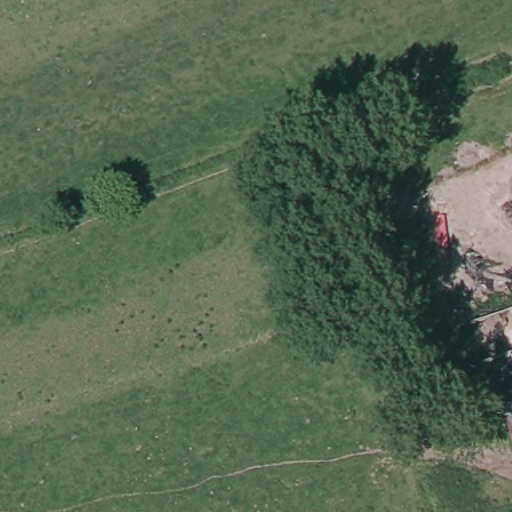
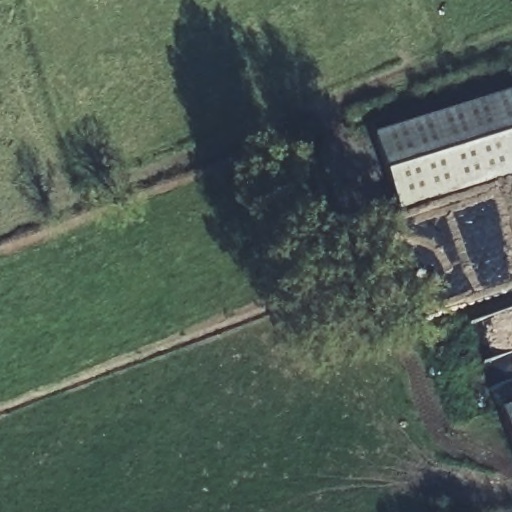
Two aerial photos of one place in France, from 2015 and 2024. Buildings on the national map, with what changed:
new [(375,135),(512,91),(512,178),(399,214),(375,135)]
unchanged [(512,412),(512,444),(502,415),(512,412)]

